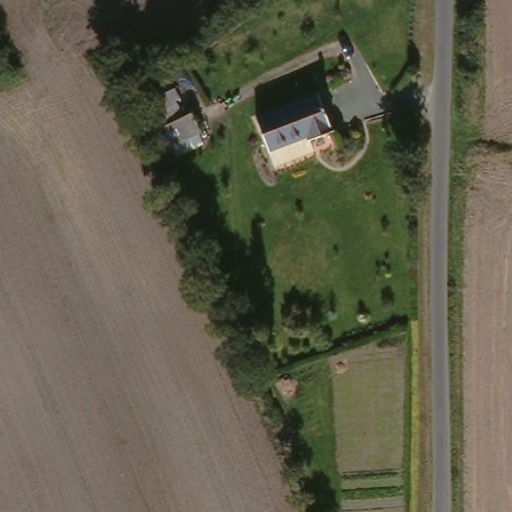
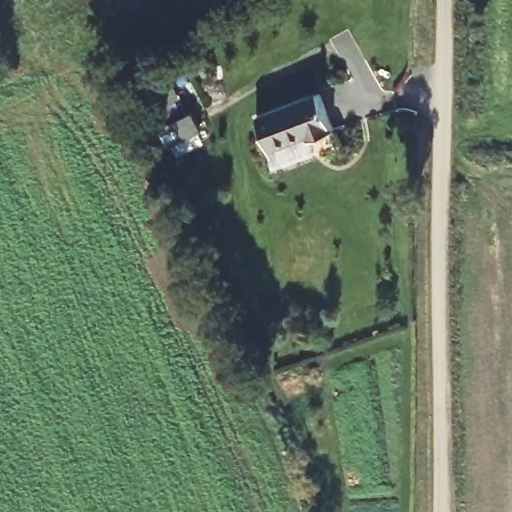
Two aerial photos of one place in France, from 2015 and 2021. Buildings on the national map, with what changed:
unchanged [(182,112),(190,108),(198,130),(164,146),(143,96),(169,81),(182,112)]
unchanged [(305,149),(301,140),(261,156),(249,122),(318,98),(335,138),(305,149)]

